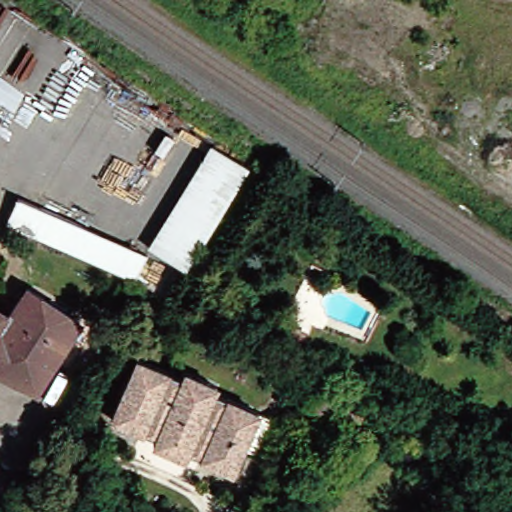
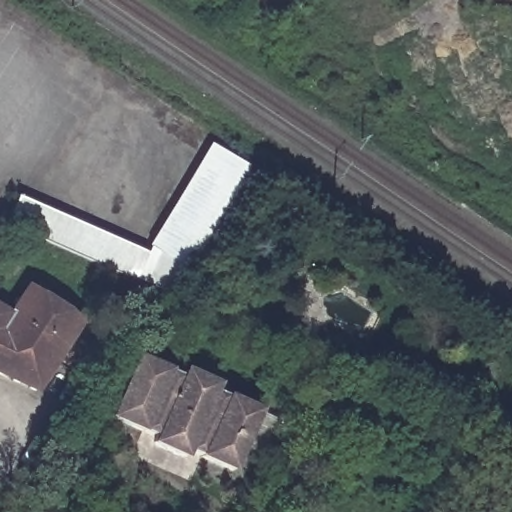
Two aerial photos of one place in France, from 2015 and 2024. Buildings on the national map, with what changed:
unchanged [(211,145),(250,166),(186,270),(150,246),(211,145)]
unchanged [(146,254),(137,279),(7,222),(19,197),(146,254)]
unchanged [(10,283),(0,300),(0,277),(10,283)]
unchanged [(7,377),(0,374),(0,310),(15,319),(32,290),(85,323),(53,376),(41,396),(7,377)]
unchanged [(140,361),(173,374),(172,376),(185,381),(187,375),(216,386),(214,394),(220,397),(227,398),(230,398),(257,410),(232,470),(201,458),(201,456),(190,452),(186,459),(156,445),(159,438),(141,432),(115,421),(140,361)]
unchanged [(351,432),(341,427),(311,414),(327,376),(362,391),(368,394),(351,432)]

